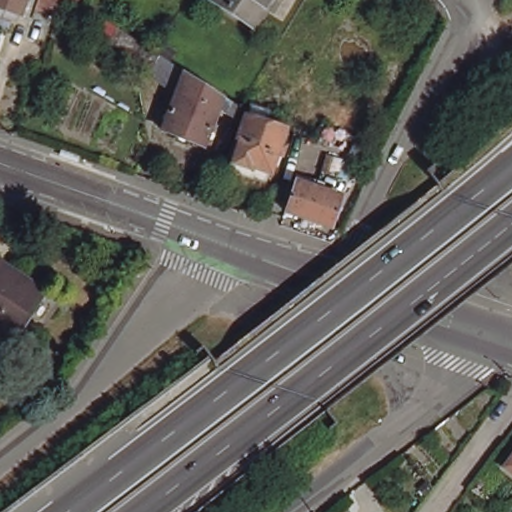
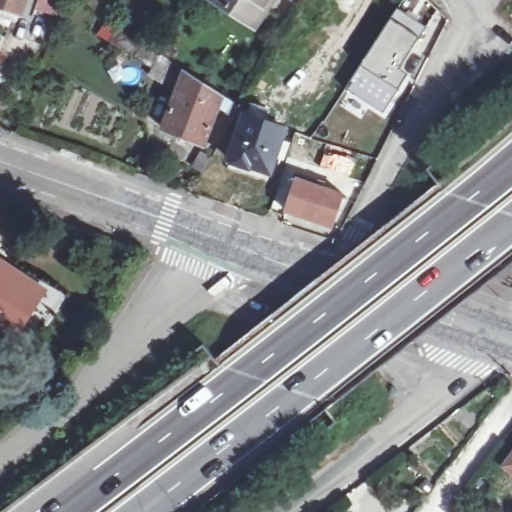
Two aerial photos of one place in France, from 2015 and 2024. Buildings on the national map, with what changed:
unchanged [(0,9),(0,0),(25,0),(20,16),(0,9)]
unchanged [(269,5),(256,24),(216,0),(268,0),(266,4),(269,5)]
new [(401,8),(430,27),(399,75),(408,80),(387,114),(349,89),(401,8)]
unchanged [(211,124),(201,151),(161,137),(174,100),(143,80),(146,76),(93,44),(103,29),(116,37),(126,43),(153,60),(159,50),(174,60),(168,70),(183,80),(238,117),(236,121),(232,129),(228,128),(213,118),(211,124)]
unchanged [(264,120),(261,131),(283,139),(278,153),(284,155),(279,168),(274,166),(264,192),(225,179),(242,124),(246,125),(251,115),(264,120)]
unchanged [(191,178),(199,161),(209,167),(199,184),(191,178)]
unchanged [(286,215),(296,186),(323,194),(329,196),(336,177),(324,173),(329,161),(353,168),(349,181),(331,230),(286,215)]
unchanged [(29,288),(0,331),(0,268),(29,288)]
unchanged [(512,474),(504,468),(512,458),(512,474)]

